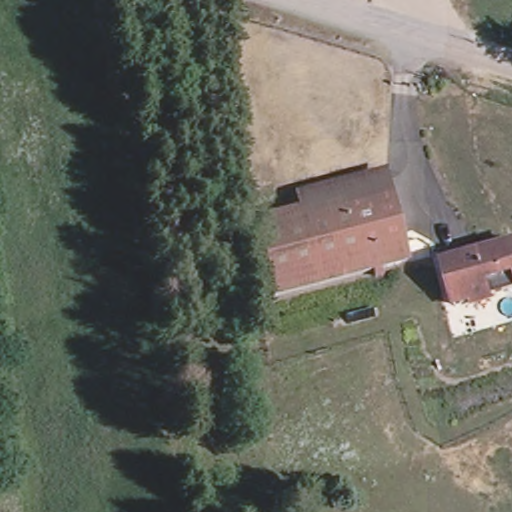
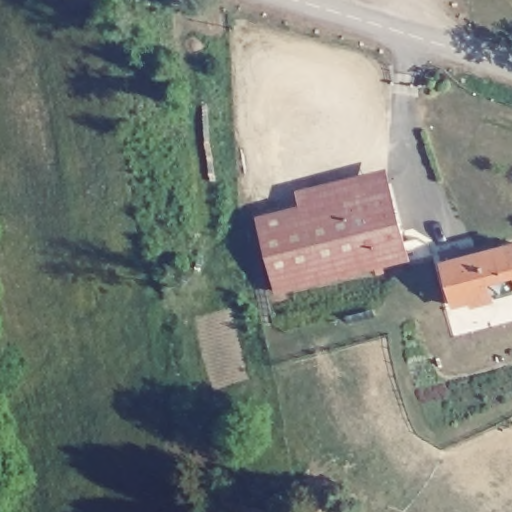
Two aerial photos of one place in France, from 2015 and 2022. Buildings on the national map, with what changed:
unchanged [(297,194),(385,173),(389,185),(301,208),(297,194)]
unchanged [(389,185),(408,261),(320,283),(301,208),(389,185)]
unchanged [(275,293),(257,219),(301,208),(320,283),(275,293)]
unchanged [(464,253),(466,263),(512,251),(512,298),(497,302),(498,306),(477,311),(475,308),(459,312),(445,257),(464,253)]
unchanged [(496,381),(502,401),(472,410),(465,389),(496,381)]

